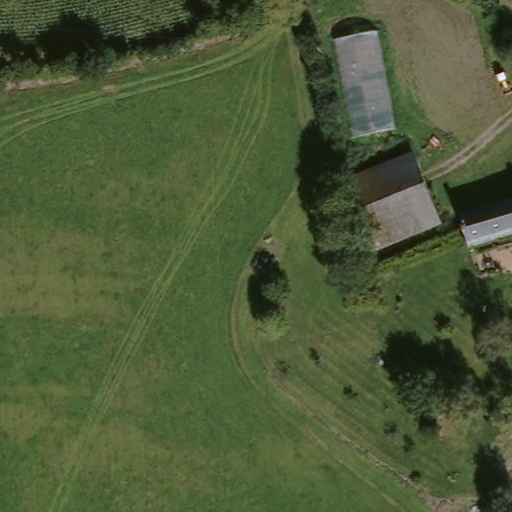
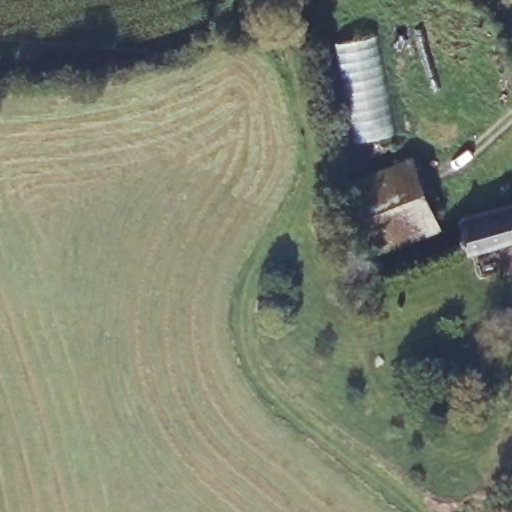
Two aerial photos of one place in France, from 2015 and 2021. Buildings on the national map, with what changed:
unchanged [(396,130),(353,140),(334,40),(378,32),(396,130)]
unchanged [(342,189),(343,188),(343,187),(344,187),(407,160),(439,226),(443,234),(376,265),(370,253),(342,189)]
unchanged [(463,240),(458,222),(468,216),(493,209),(512,204),(512,242),(506,244),(470,255),(463,240)]

